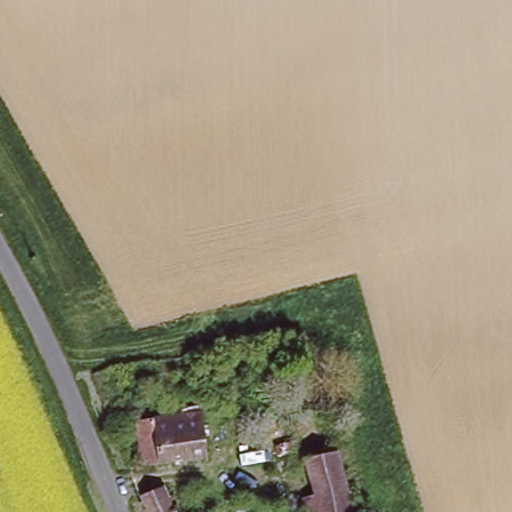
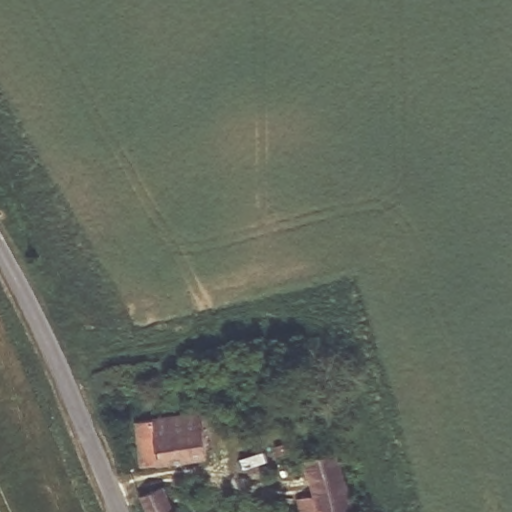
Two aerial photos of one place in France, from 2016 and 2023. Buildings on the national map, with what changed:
unchanged [(211,414),(215,458),(145,463),(141,419),(211,414)]
unchanged [(299,496),(312,493),(301,457),(336,446),(355,511),(355,512),(303,512),(299,496)]
unchanged [(167,486),(178,512),(156,512),(148,494),(167,486)]

